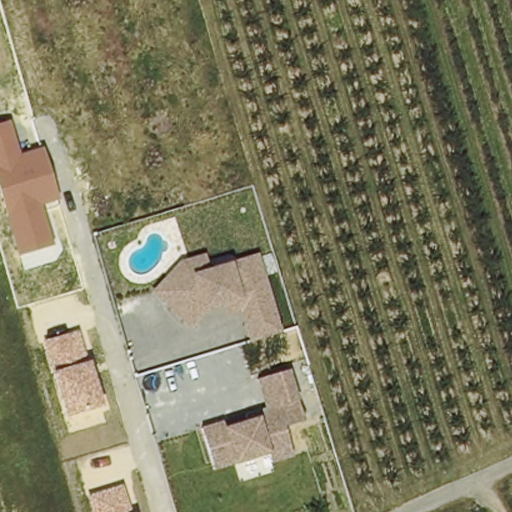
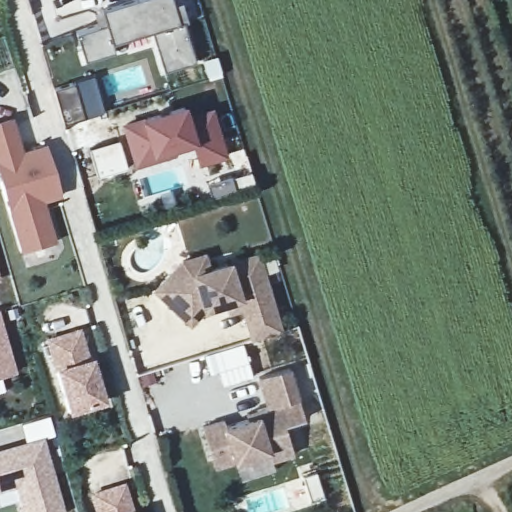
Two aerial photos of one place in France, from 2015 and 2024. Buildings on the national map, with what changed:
new [(163,72),(151,32),(112,43),(115,53),(87,61),(78,35),(107,26),(102,11),(140,0),(172,0),(179,25),(184,23),(196,62),(163,72)]
new [(199,167),(193,145),(172,151),(175,159),(134,170),(122,125),(143,118),(185,106),(187,115),(213,108),(228,158),(199,167)]
unchanged [(23,151),(45,145),(60,199),(42,203),(56,246),(20,255),(0,189),(0,124),(13,121),(23,151)]
unchanged [(283,331),(248,340),(241,315),(228,307),(207,312),(190,328),(153,292),(179,262),(205,254),(211,266),(233,261),(262,253),(283,331)]
new [(0,380),(0,321),(17,376),(0,380)]
unchanged [(92,358),(104,406),(67,416),(55,371),(47,339),(82,330),(92,358)]
unchanged [(307,421),(287,426),(295,457),(272,465),(267,455),(216,469),(202,424),(227,417),(228,426),(262,416),(259,409),(268,408),(260,378),(293,370),(307,421)]
new [(0,494),(0,450),(42,439),(64,512),(21,512),(15,490),(0,494)]
unchanged [(96,512),(90,494),(126,483),(136,512),(96,512)]

